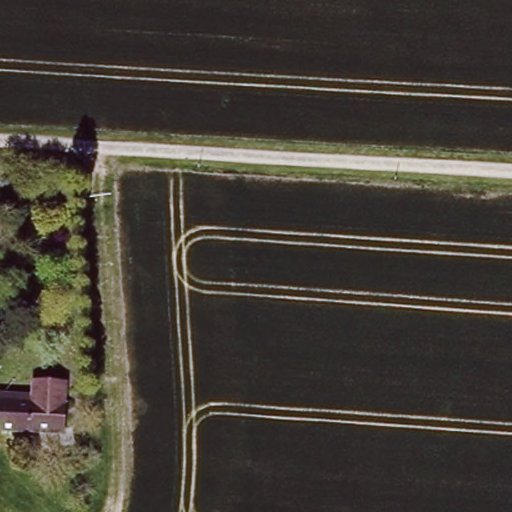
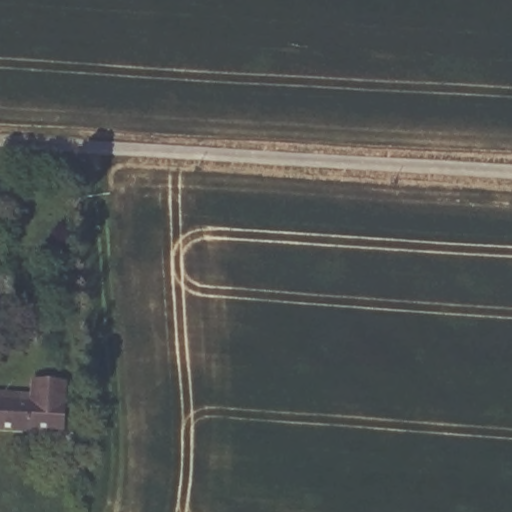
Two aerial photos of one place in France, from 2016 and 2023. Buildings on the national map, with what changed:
unchanged [(5,401),(35,403),(37,383),(65,385),(65,404),(64,435),(0,434),(0,401),(5,401)]

